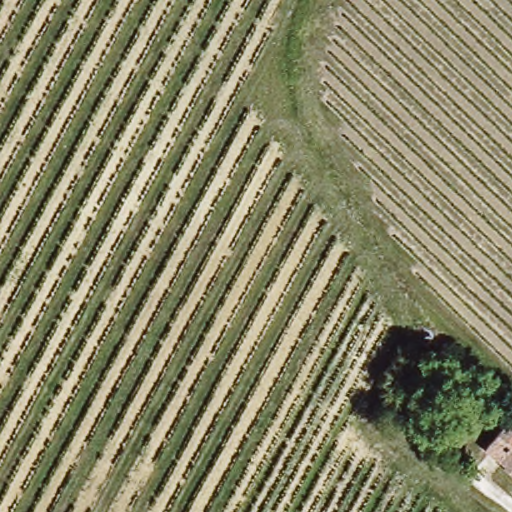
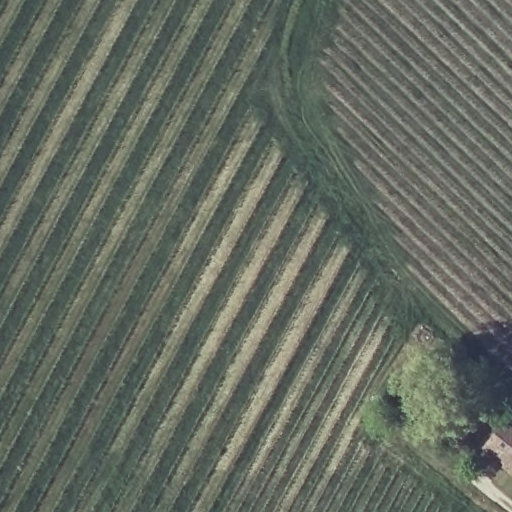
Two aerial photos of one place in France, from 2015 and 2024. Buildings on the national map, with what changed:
unchanged [(507,462),(505,466),(485,451),(508,421),(512,424),(512,456),(507,462)]
unchanged [(507,462),(512,456),(512,466),(507,462)]

